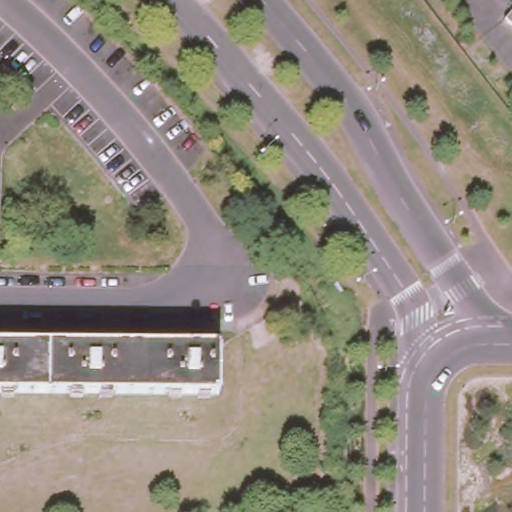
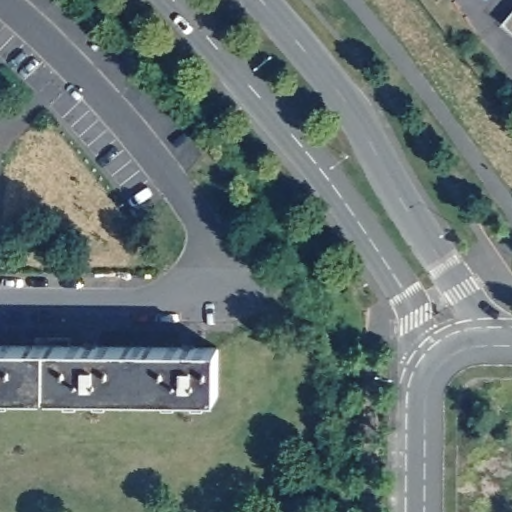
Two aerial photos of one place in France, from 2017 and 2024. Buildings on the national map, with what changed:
unchanged [(512,18),(512,29),(507,24),(512,18)]
unchanged [(219,348),(218,396),(0,395),(0,347),(219,348)]

